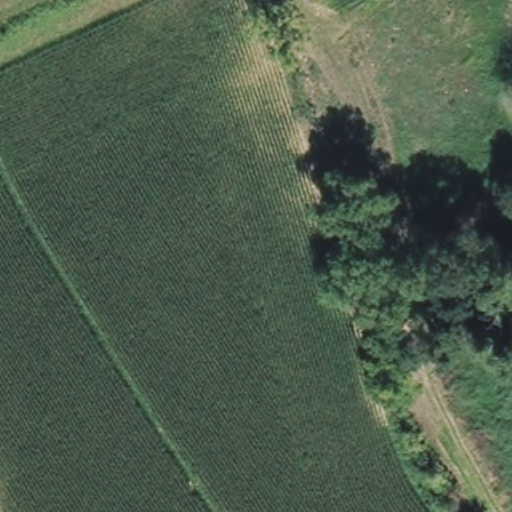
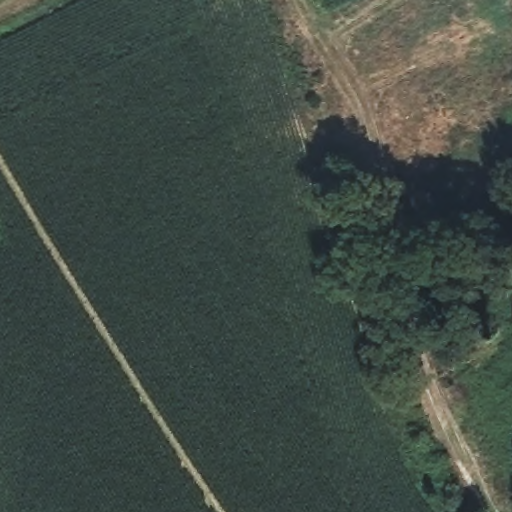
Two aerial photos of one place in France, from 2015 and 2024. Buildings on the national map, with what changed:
[]

